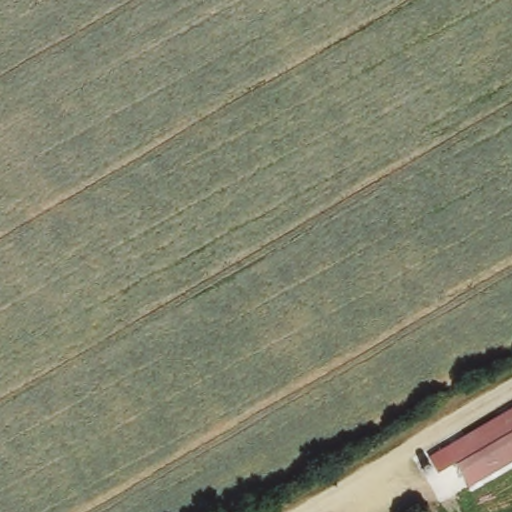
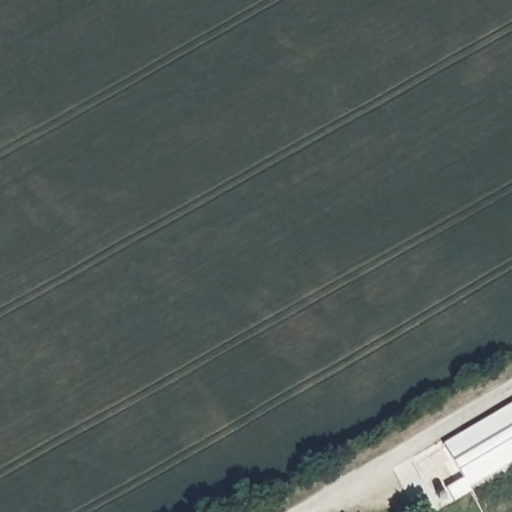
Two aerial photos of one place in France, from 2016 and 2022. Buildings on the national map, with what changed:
unchanged [(455,461),(438,471),(430,457),(512,409),(512,459),(469,485),(455,461)]

